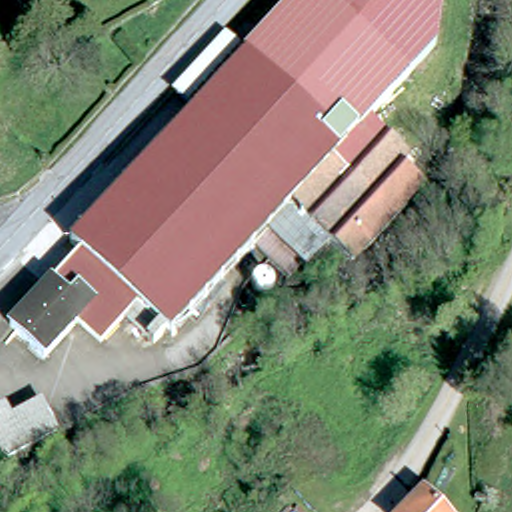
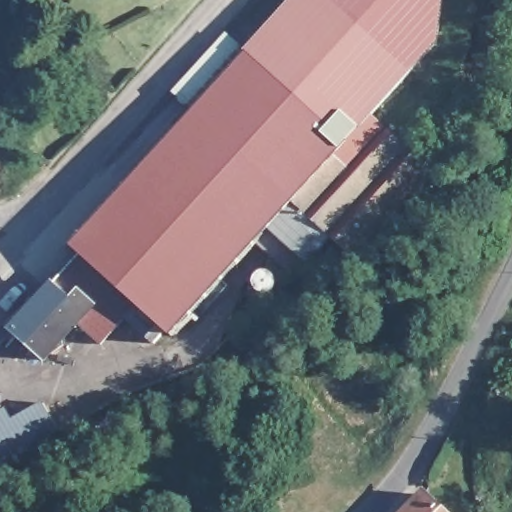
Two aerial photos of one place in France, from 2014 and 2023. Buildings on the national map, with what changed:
unchanged [(110,348),(87,329),(85,330),(58,359),(51,366),(17,335),(41,309),(51,298),(60,288),(87,258),(77,249),(103,220),(109,214),(197,117),(199,115),(180,95),(209,64),(229,42),(250,60),(283,23),(305,0),(447,0),(443,47),(420,75),(395,105),(377,125),(420,165),(415,170),(423,176),(425,179),(429,185),(363,260),(358,265),(347,255),(337,246),(312,270),(308,265),(292,280),(286,274),(273,261),(262,251),(165,350),(134,324),(110,348)]
unchanged [(56,6),(33,21),(20,1),(22,0),(52,0),(56,6)]
unchanged [(265,285),(269,283),(273,283),(278,285),(281,289),(283,293),(283,298),(280,305),(276,307),(271,308),(266,308),(262,306),(260,302),(257,298),(257,293),(260,289),(260,287),(265,285)]
unchanged [(10,467),(0,457),(0,416),(2,414),(8,420),(14,425),(45,407),(62,439),(10,467)]
unchanged [(488,495),(486,503),(475,501),(477,491),(488,495)]
unchanged [(445,512),(423,512),(434,501),(445,512)]

